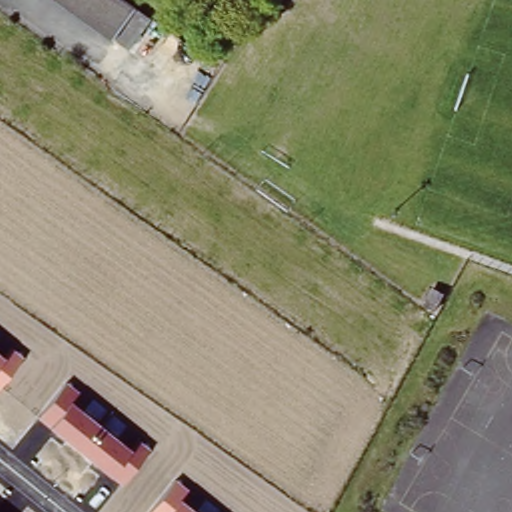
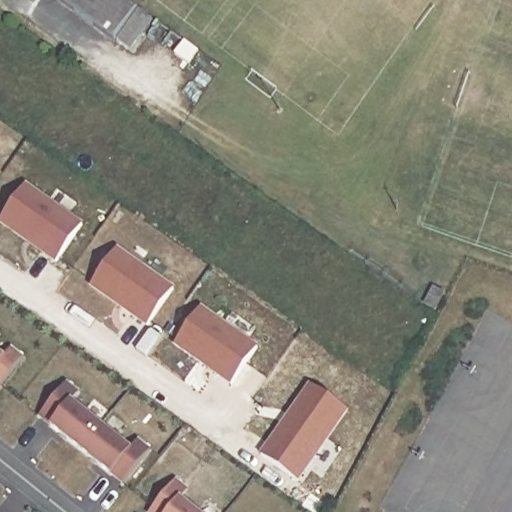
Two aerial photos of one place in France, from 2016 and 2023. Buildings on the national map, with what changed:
unchanged [(143,8),(120,41),(63,0),(132,0),(143,8)]
new [(23,185),(80,224),(55,260),(0,222),(0,218),(23,185)]
new [(117,249),(174,289),(148,326),(91,286),(117,249)]
new [(201,308),(258,348),(232,385),(175,344),(201,308)]
unchanged [(5,358),(13,347),(24,357),(0,385),(0,354),(5,358)]
unchanged [(38,414),(67,380),(79,390),(70,400),(132,450),(140,440),(151,449),(122,483),(38,414)]
new [(311,385),(347,411),(298,482),(261,456),(311,385)]
unchanged [(190,486),(181,498),(198,512),(146,512),(177,476),(190,486)]

